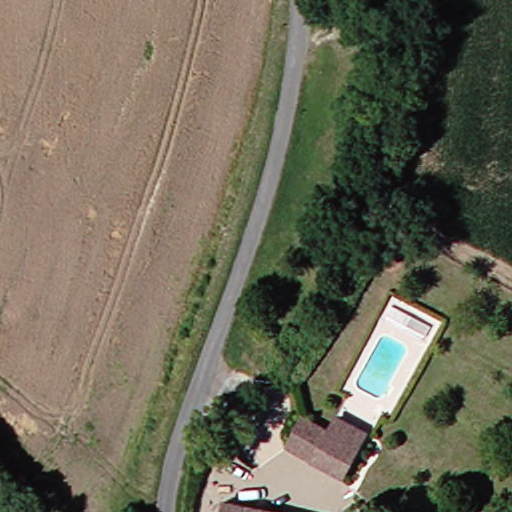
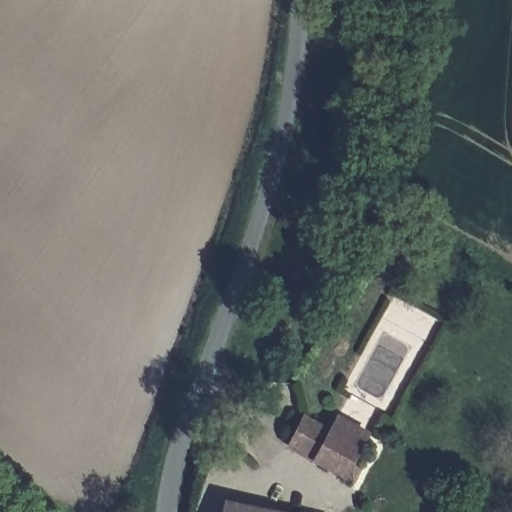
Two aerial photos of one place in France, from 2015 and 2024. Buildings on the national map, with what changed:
unchanged [(277,446),(293,417),(323,432),(331,418),(360,435),(352,450),(337,478),(277,446)]
unchanged [(219,499),(282,512),(216,512),(219,499)]

